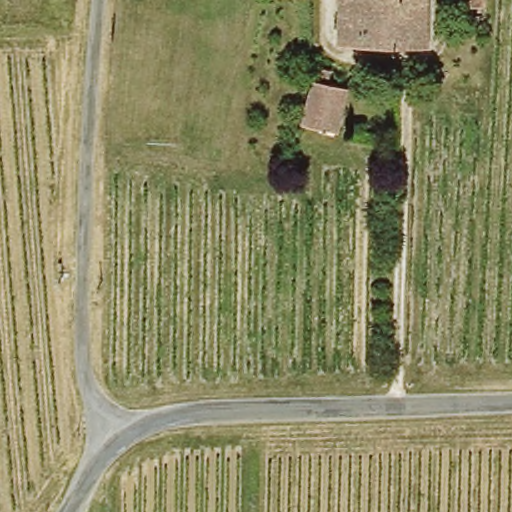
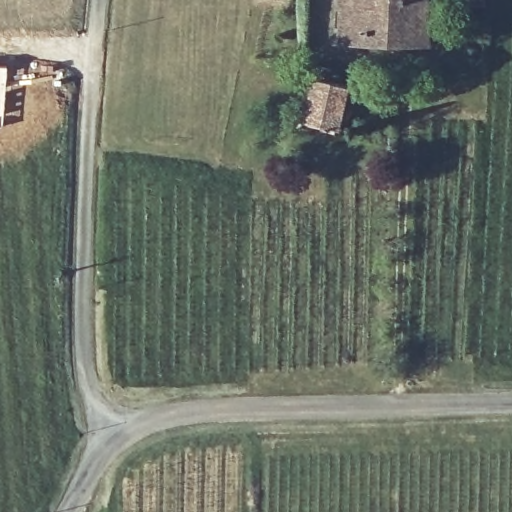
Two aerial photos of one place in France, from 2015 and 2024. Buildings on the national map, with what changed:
unchanged [(359,0),(407,0),(407,45),(359,44),(359,0)]
unchanged [(437,0),(438,45),(407,45),(407,0),(437,0)]
unchanged [(457,0),(484,0),(484,2),(457,0)]
new [(7,65),(2,126),(0,125),(0,64),(7,65)]
unchanged [(332,74),(330,84),(350,89),(338,134),(305,127),(315,71),(332,74)]

